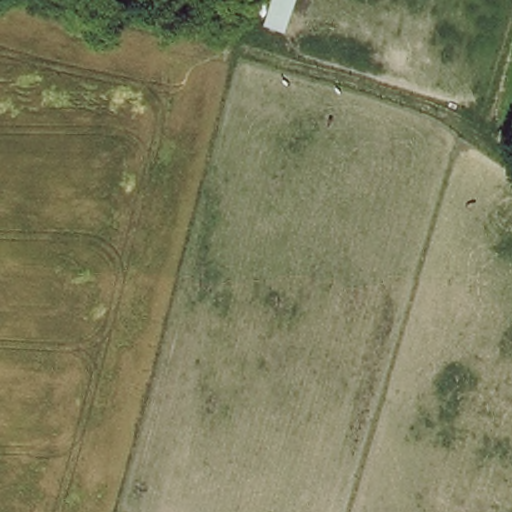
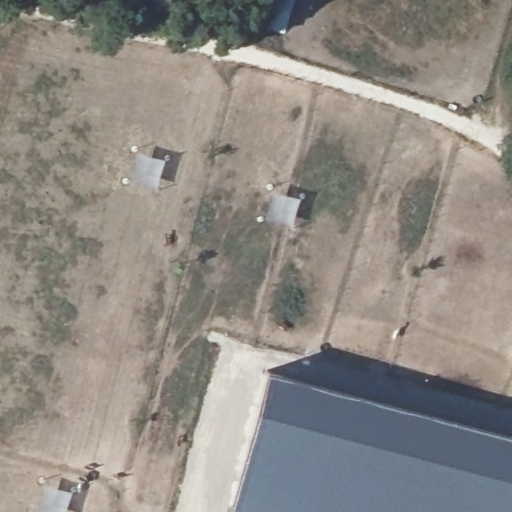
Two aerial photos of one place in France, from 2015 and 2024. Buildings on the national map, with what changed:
new [(268,369),(512,432),(512,512),(231,512),(268,369)]

